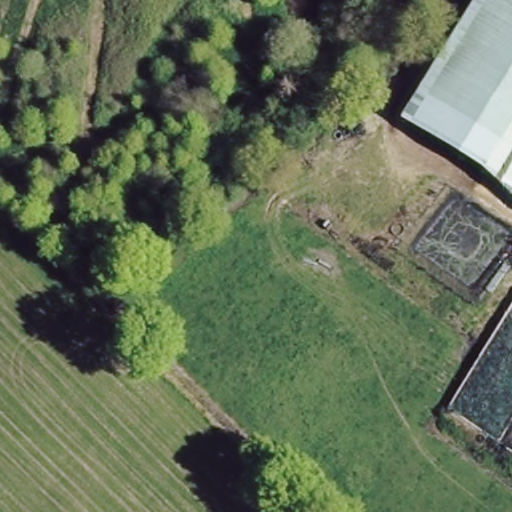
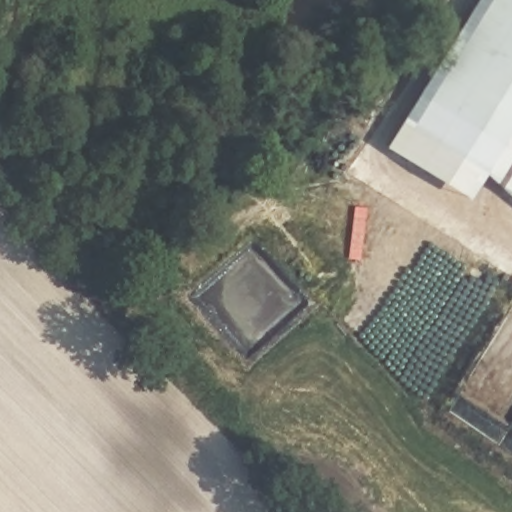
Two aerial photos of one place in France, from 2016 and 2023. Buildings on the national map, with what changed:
unchanged [(505,147),(417,96),(479,0),(512,0),(512,135),(505,147)]
unchanged [(505,147),(492,169),(409,116),(417,96),(505,147)]
new [(492,169),(505,147),(512,135),(512,198),(487,176),(472,200),(387,149),(409,116),(492,169)]

